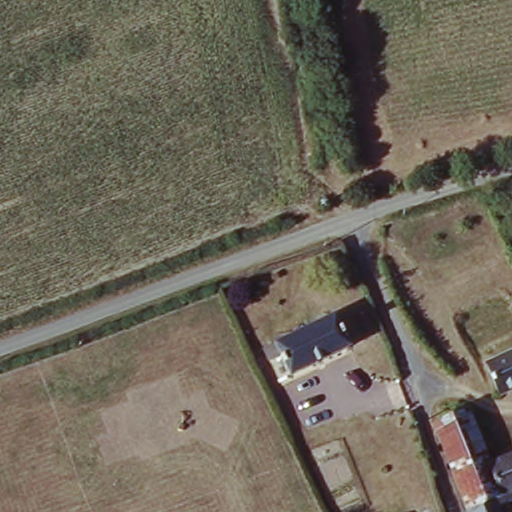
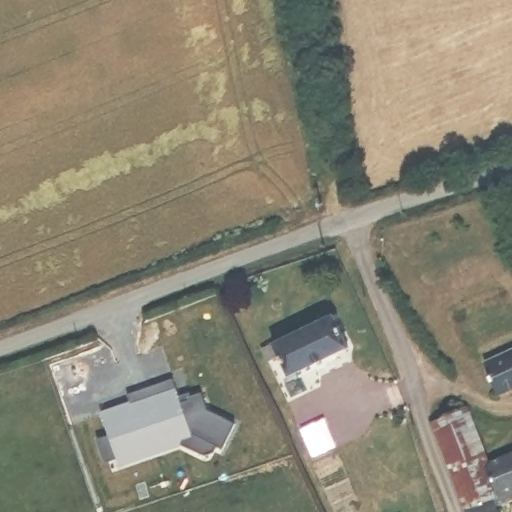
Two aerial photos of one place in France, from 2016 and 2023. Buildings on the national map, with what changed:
unchanged [(333,319),(349,349),(292,379),(276,347),(333,319)]
unchanged [(501,390),(487,360),(512,349),(512,385),(501,390)]
new [(97,440),(106,435),(99,414),(129,403),(126,394),(168,377),(177,403),(191,398),(189,395),(198,391),(207,411),(232,423),(222,446),(215,443),(209,453),(182,441),(141,455),(139,449),(104,462),(97,440)]
unchanged [(489,450),(456,464),(440,423),(473,407),(489,450)]
unchanged [(456,464),(489,450),(494,460),(508,493),(501,497),(506,512),(475,512),(474,509),(456,464)]
unchanged [(512,452),(512,492),(508,493),(494,460),(512,452)]

